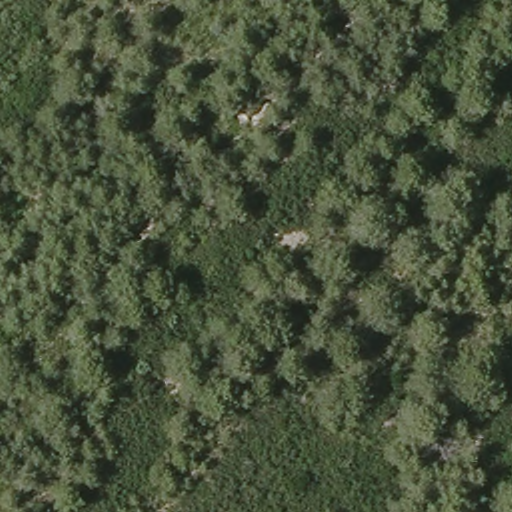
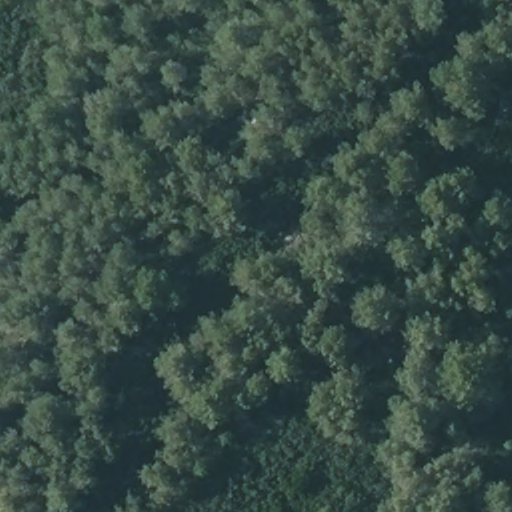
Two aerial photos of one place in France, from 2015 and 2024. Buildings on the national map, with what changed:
[]

